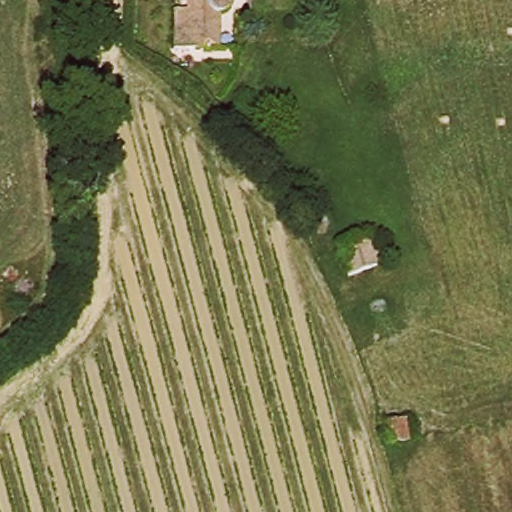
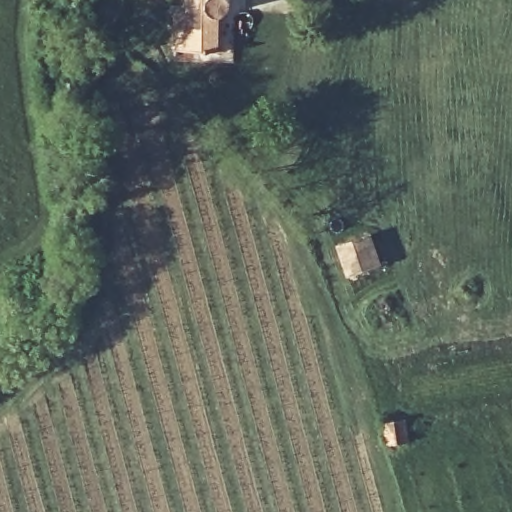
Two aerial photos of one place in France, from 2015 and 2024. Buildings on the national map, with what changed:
unchanged [(189,11),(189,0),(231,0),(232,2),(229,6),(221,17),(222,47),(189,46),(175,46),(176,10),(189,11)]
unchanged [(335,246),(362,239),(369,237),(379,266),(373,268),(345,276),(335,246)]
unchanged [(387,423),(408,420),(409,440),(389,445),(387,423)]

